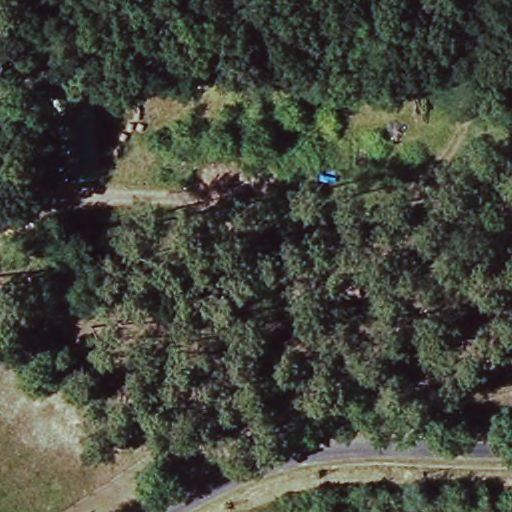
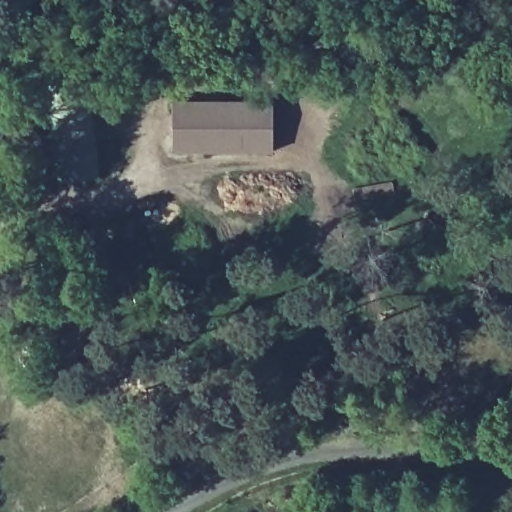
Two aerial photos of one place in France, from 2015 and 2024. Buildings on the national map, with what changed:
unchanged [(97,76),(101,179),(52,179),(50,75),(97,76)]
new [(172,99),(272,99),(272,151),(171,151),(172,99)]

